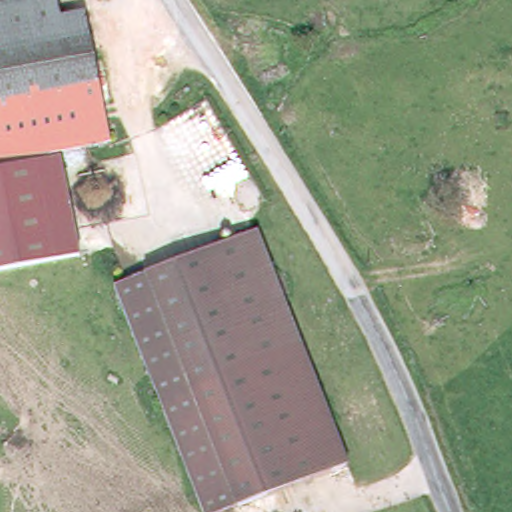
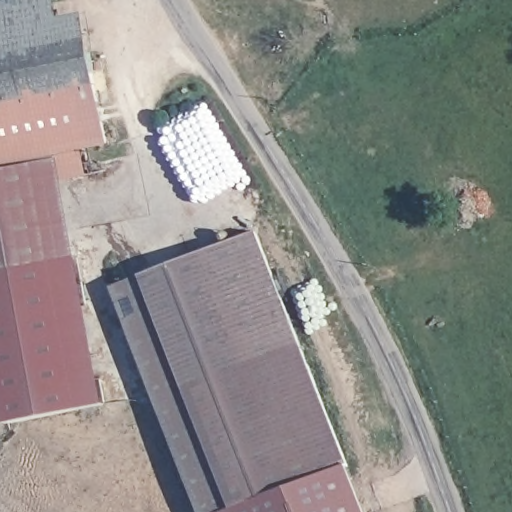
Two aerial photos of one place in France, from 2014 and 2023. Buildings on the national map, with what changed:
unchanged [(0,164),(0,3),(14,0),(54,0),(61,37),(85,31),(108,143),(59,152),(0,164)]
unchanged [(59,152),(79,250),(0,266),(0,164),(59,152)]
unchanged [(257,226),(348,461),(218,512),(204,512),(114,281),(257,226)]
new [(106,403),(8,423),(0,380),(0,266),(79,250),(106,403)]

